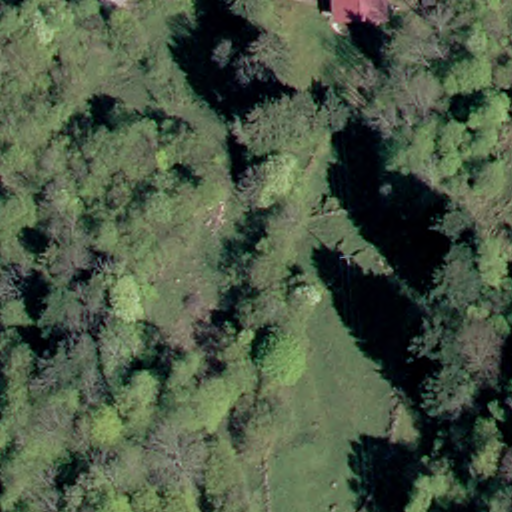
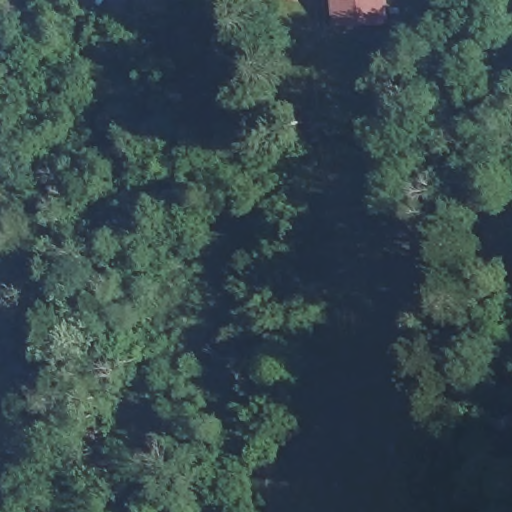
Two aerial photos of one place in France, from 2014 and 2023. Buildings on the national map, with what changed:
unchanged [(389,15),(348,12),(348,0),(390,0),(389,15)]

